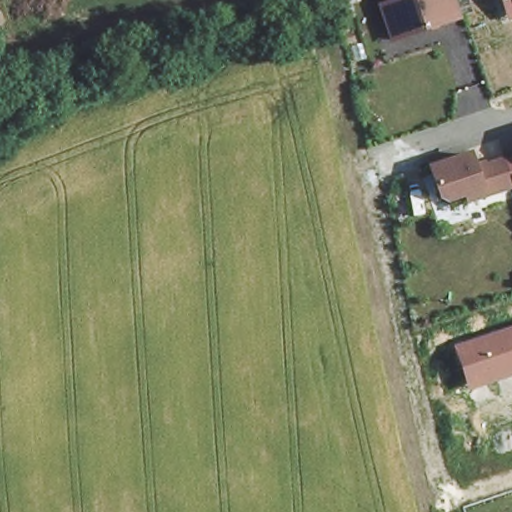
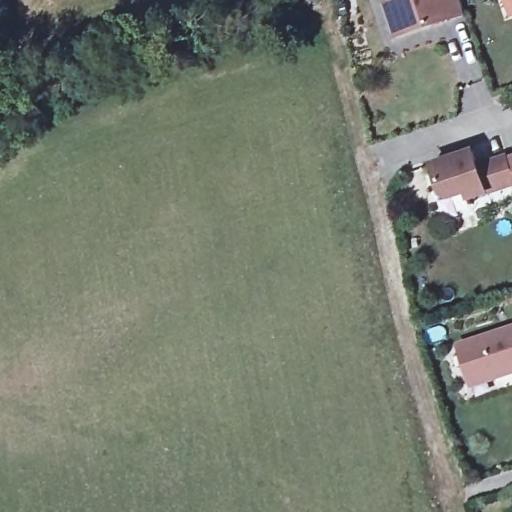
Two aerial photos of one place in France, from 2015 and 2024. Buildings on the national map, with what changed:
unchanged [(467,12),(393,37),(381,0),(462,0),(467,12)]
unchanged [(502,0),(512,0),(512,10),(505,12),(502,0)]
unchanged [(482,159),(512,150),(512,184),(465,200),(445,195),(434,157),(476,143),(482,159)]
unchanged [(462,344),(512,327),(512,371),(497,376),(475,383),(472,374),(462,344)]

